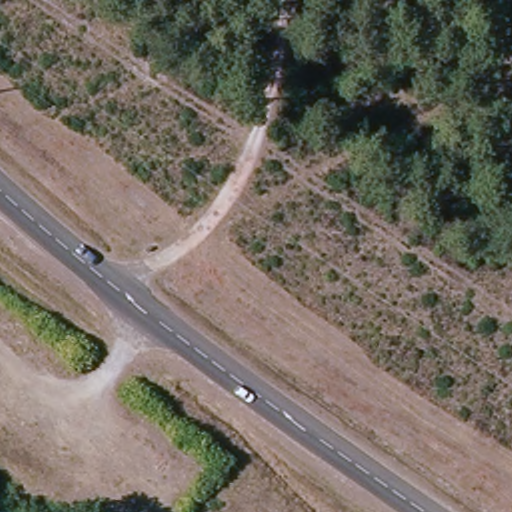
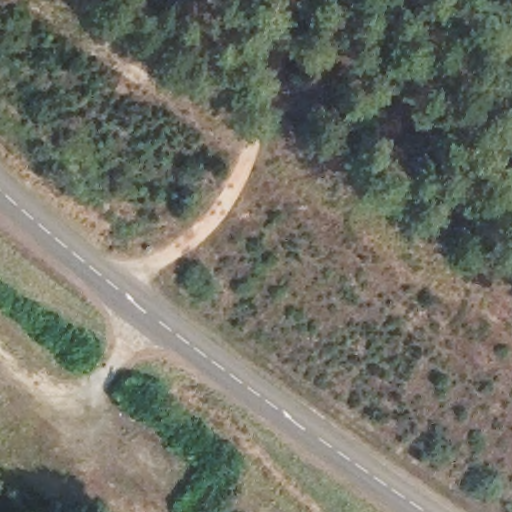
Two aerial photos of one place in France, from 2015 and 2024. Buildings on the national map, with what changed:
[]

